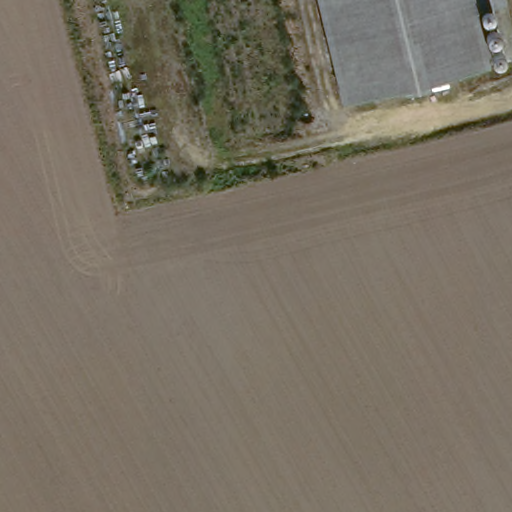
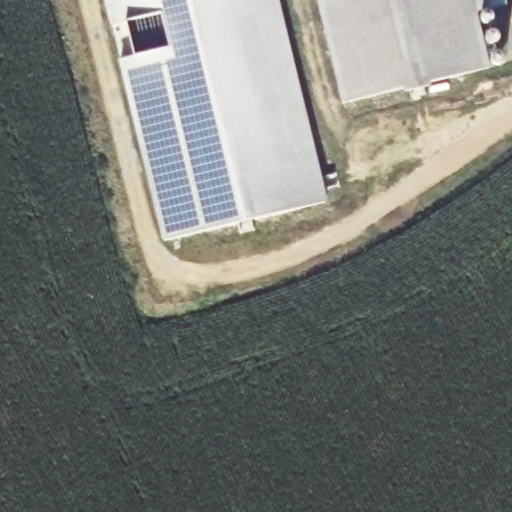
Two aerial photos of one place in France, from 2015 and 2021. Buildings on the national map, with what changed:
new [(104,0),(277,0),(325,201),(162,240),(104,0)]
unchanged [(503,3),(480,14),(491,70),(340,101),(315,0),(503,0),(503,3)]

